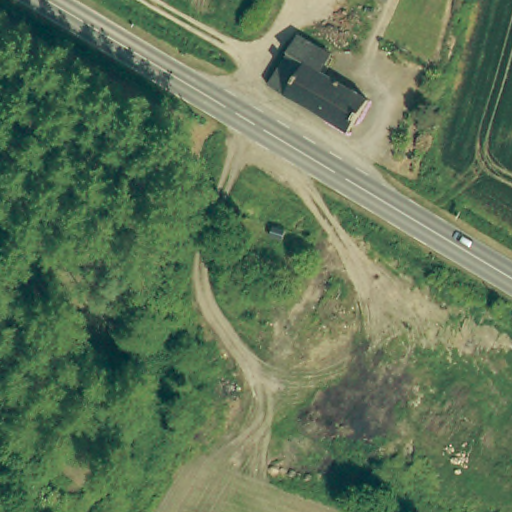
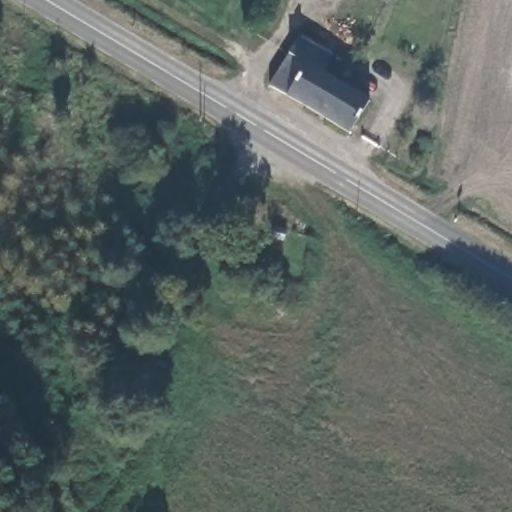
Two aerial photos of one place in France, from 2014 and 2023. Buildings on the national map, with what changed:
unchanged [(367,1),(365,0),(387,0),(383,9),(367,1)]
unchanged [(304,30),(338,51),(329,70),(373,97),(356,130),(273,82),(304,30)]

